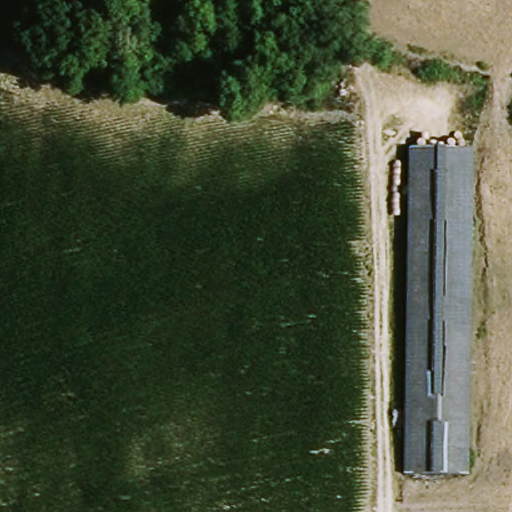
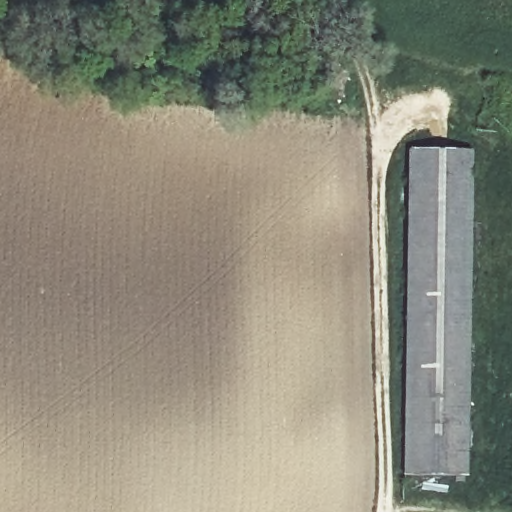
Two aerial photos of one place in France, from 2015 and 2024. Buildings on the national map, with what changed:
unchanged [(403,151),(466,150),(471,472),(408,473),(403,175),(403,151)]

